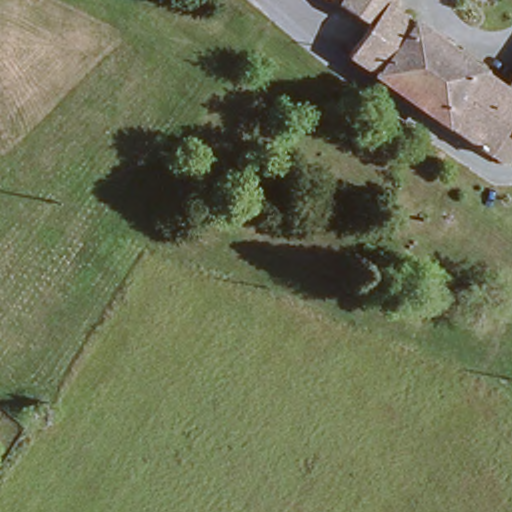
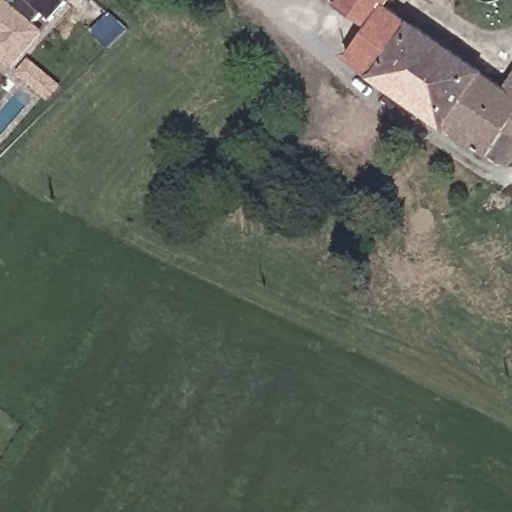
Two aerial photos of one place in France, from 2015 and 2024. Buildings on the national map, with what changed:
new [(5,0),(61,0),(8,65),(0,58),(0,0),(1,0),(3,2),(5,0)]
unchanged [(349,49),(368,21),(338,1),(339,0),(387,0),(504,81),(512,70),(512,145),(504,156),(486,143),(349,49)]

